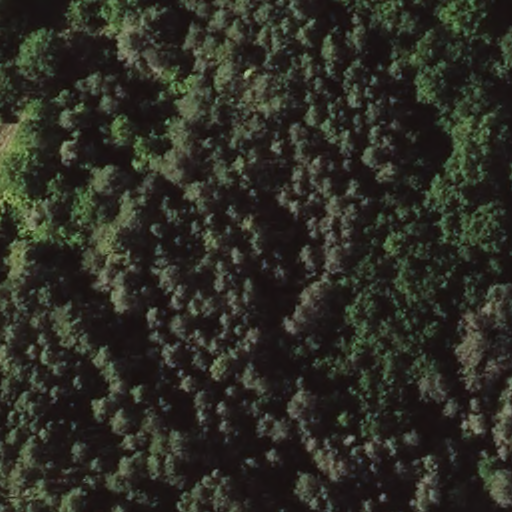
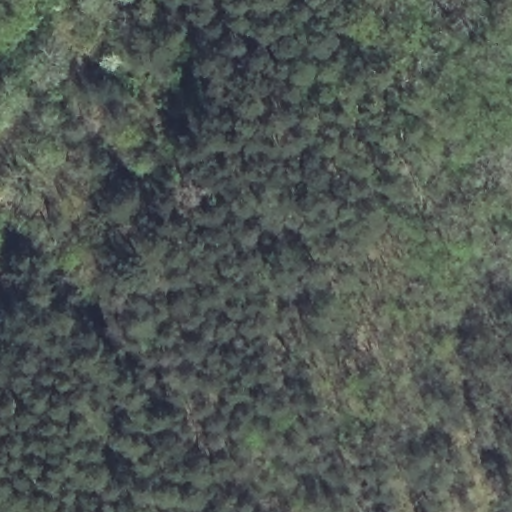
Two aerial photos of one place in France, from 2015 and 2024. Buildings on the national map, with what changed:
[]

